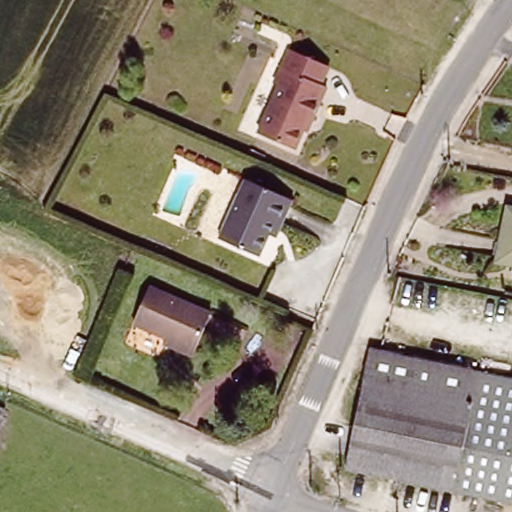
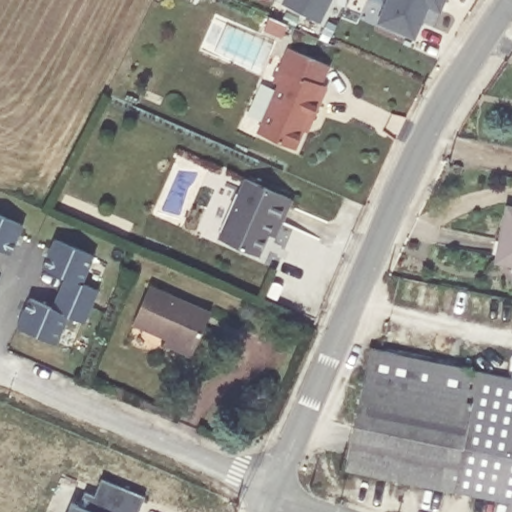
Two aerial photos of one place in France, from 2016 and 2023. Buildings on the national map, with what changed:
new [(282,0),(332,0),(321,23),(281,4),(282,0)]
new [(427,7),(415,39),(377,23),(386,0),(446,0),(441,13),(427,7)]
unchanged [(327,84),(311,119),(305,116),(289,151),(253,136),(276,86),(270,83),(278,64),(327,84)]
unchanged [(279,235),(272,232),(262,256),(222,238),(247,175),(295,196),(279,235)]
unchanged [(501,258),(512,212),(512,260),(501,258)]
new [(11,256),(0,250),(0,216),(24,226),(11,256)]
new [(16,327),(28,298),(52,306),(64,277),(42,268),(54,238),(94,255),(82,283),(100,291),(86,324),(69,317),(59,345),(16,327)]
demolished [(96,277),(80,284),(80,290),(95,295),(86,319),(66,310),(74,286),(55,250),(79,239),(96,277)]
unchanged [(216,308),(195,350),(169,342),(172,332),(137,316),(153,280),(216,308)]
unchanged [(472,415),(356,391),(357,372),(364,348),(491,368),(472,415)]
unchanged [(482,489),(446,484),(472,415),(491,368),(509,371),(482,489)]
unchanged [(482,489),(509,371),(512,371),(512,494),(482,489)]
unchanged [(352,469),(356,391),(472,415),(446,484),(352,469)]
new [(137,512),(66,512),(70,502),(78,505),(84,491),(94,495),(101,477),(144,496),(137,512)]

